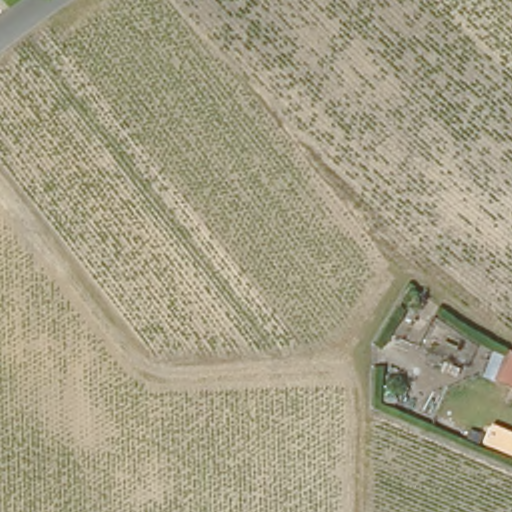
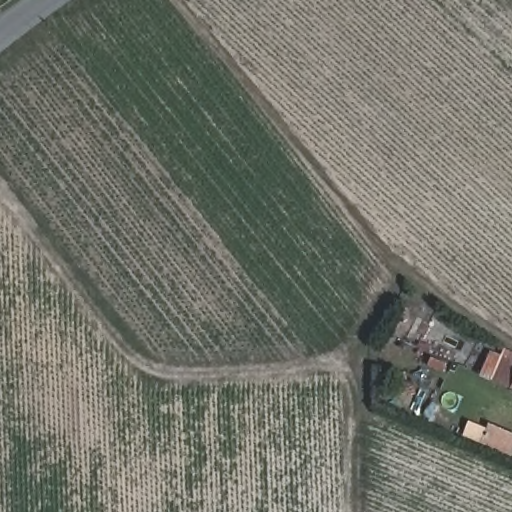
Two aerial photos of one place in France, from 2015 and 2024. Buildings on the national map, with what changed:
unchanged [(504,387),(512,368),(512,391),(504,387)]

